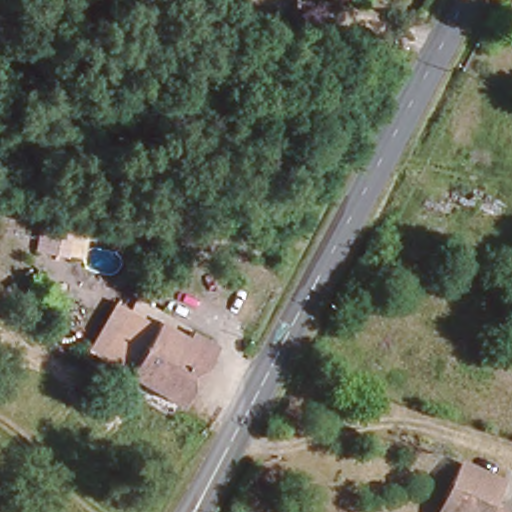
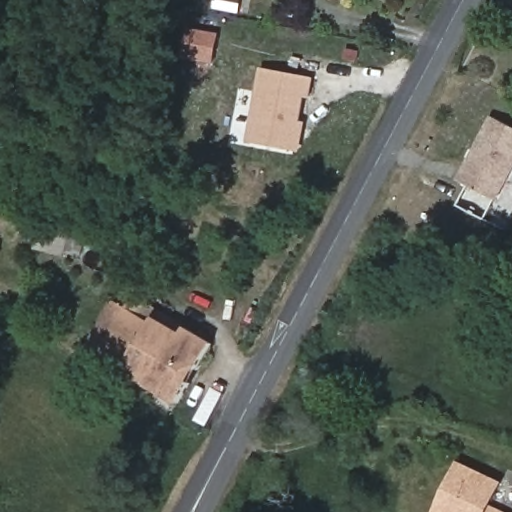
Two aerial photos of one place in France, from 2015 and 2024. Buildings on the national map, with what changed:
new [(239,14),(212,9),(214,0),(242,0),(239,14)]
new [(219,34),(214,64),(182,59),(188,28),(219,34)]
new [(260,69),(315,79),(311,100),(306,99),(302,122),(306,123),(301,152),(246,142),(260,69)]
new [(512,128),(512,177),(498,202),(457,180),(491,116),(512,128)]
unchanged [(46,222),(69,227),(64,254),(40,250),(46,222)]
unchanged [(93,328),(112,297),(121,301),(102,334),(93,328)]
unchanged [(126,306),(150,320),(154,315),(180,330),(183,325),(212,342),(180,400),(99,353),(126,306)]
unchanged [(504,477),(494,504),(512,512),(431,512),(457,457),(504,477)]

